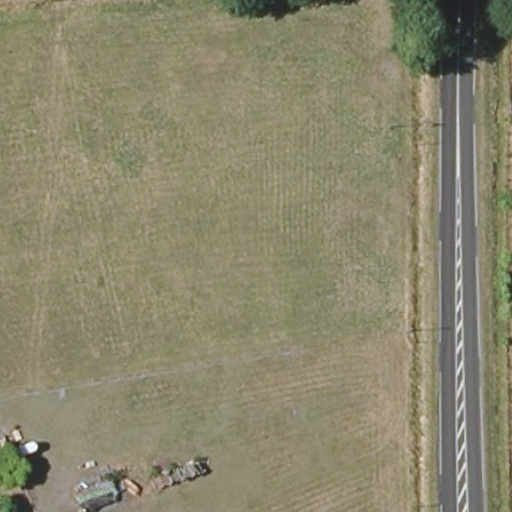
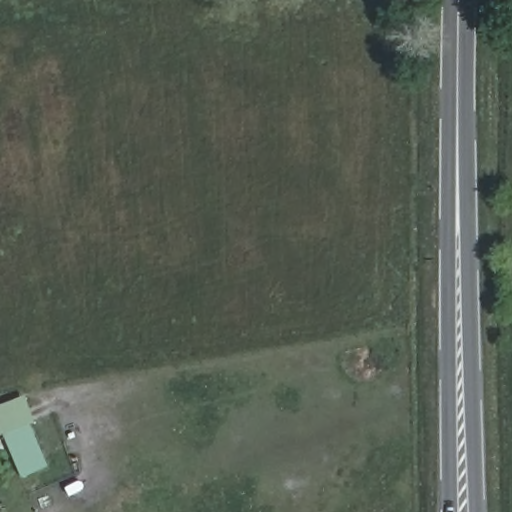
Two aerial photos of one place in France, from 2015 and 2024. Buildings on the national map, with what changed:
new [(21,477),(3,435),(0,436),(0,407),(8,404),(17,429),(30,423),(48,467),(21,477)]

